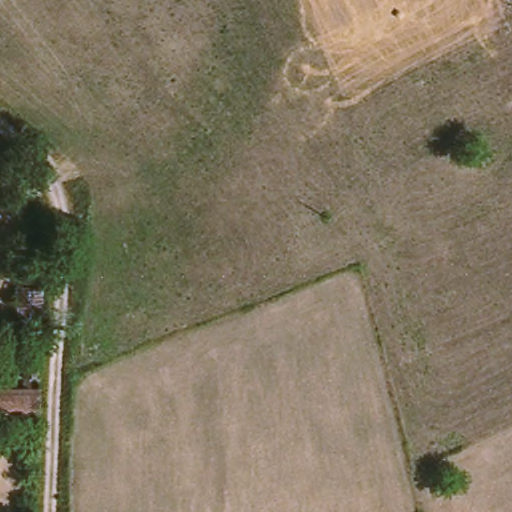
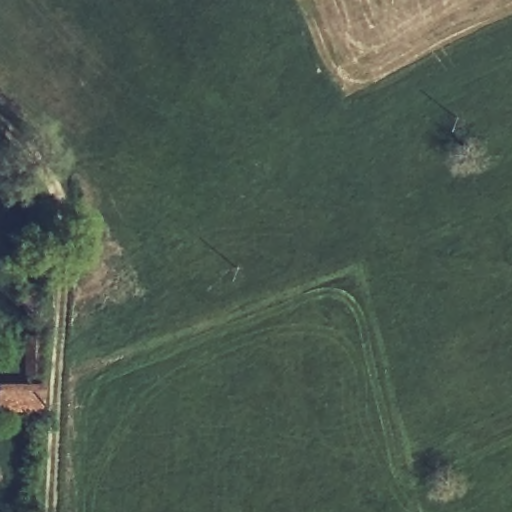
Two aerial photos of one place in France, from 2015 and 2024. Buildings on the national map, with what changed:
unchanged [(16,290),(40,292),(37,317),(14,315),(16,290)]
unchanged [(36,383),(16,382),(17,339),(37,340),(36,383)]
unchanged [(40,389),(40,411),(0,411),(0,388),(40,389)]

